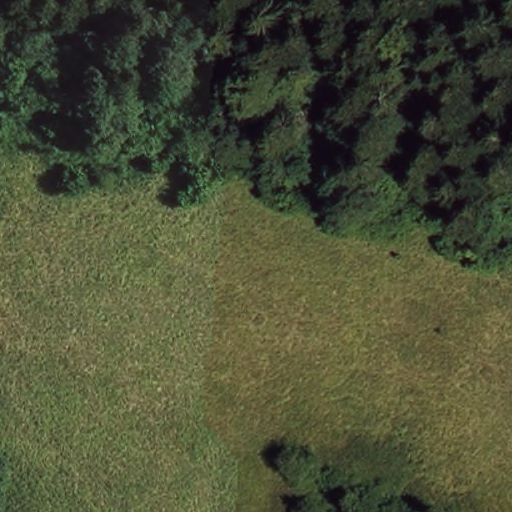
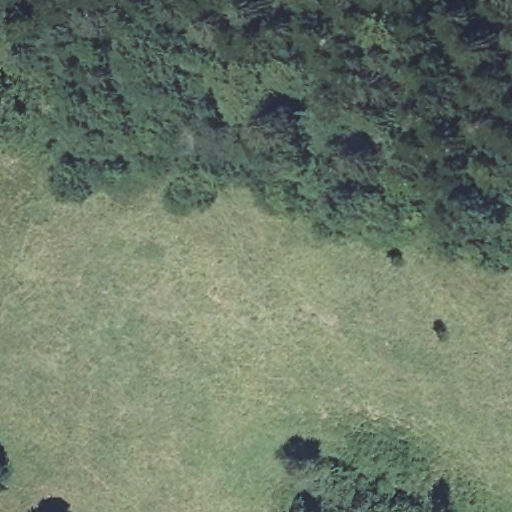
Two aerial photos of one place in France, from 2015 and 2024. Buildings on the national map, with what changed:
[]

